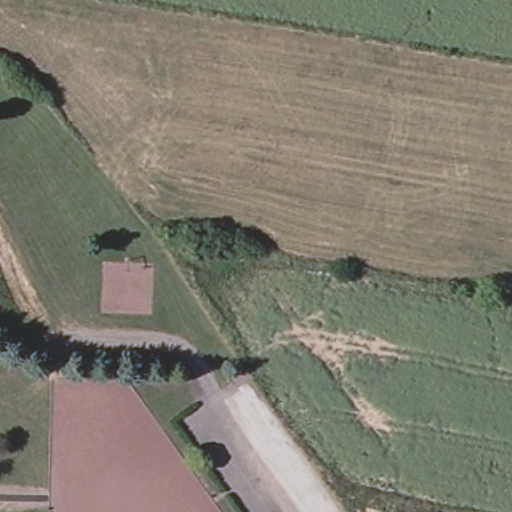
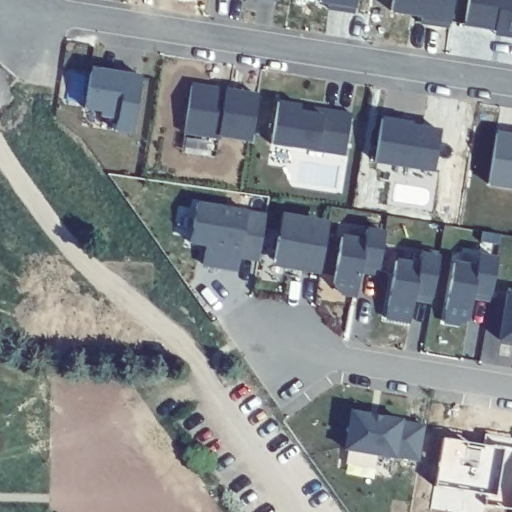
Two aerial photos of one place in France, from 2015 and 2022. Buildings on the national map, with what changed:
new [(339,13),(339,7),(319,4),(320,0),(358,0),(356,15),(339,13)]
new [(423,24),(424,19),(392,15),(394,0),(455,0),(451,29),(423,24)]
new [(504,37),(504,33),(466,27),(470,0),(512,0),(512,39),(504,37)]
new [(114,130),(116,119),(100,116),(100,111),(84,110),(91,69),(140,77),(131,135),(114,130)]
new [(191,89),(257,99),(251,144),(220,138),(219,140),(184,135),(191,89)]
new [(278,105),(351,116),(344,159),(272,148),(278,105)]
new [(383,120),(410,123),(409,130),(439,134),(434,172),(375,164),(383,120)]
new [(490,182),(498,131),(512,134),(512,185),(490,182)]
new [(238,260),(237,273),(201,266),(206,245),(189,243),(198,202),(246,211),(266,215),(256,263),(238,260)]
new [(274,265),(283,214),(326,222),(318,275),(274,265)]
new [(341,297),(333,283),(343,236),(364,240),(366,229),(384,232),(378,277),(359,275),(356,299),(341,297)]
new [(443,324),(454,263),(476,267),(479,254),(497,257),(489,302),(472,301),(469,321),(458,327),(443,324)]
new [(411,324),(386,319),(397,260),(418,264),(419,255),(438,258),(431,305),(414,302),(411,324)]
new [(499,340),(507,291),(512,292),(512,343),(499,340)]
new [(396,460),(344,450),(351,411),(404,420),(403,425),(424,427),(419,461),(396,460)]

